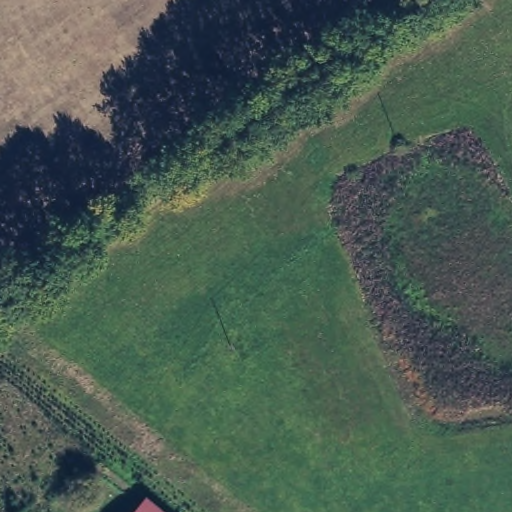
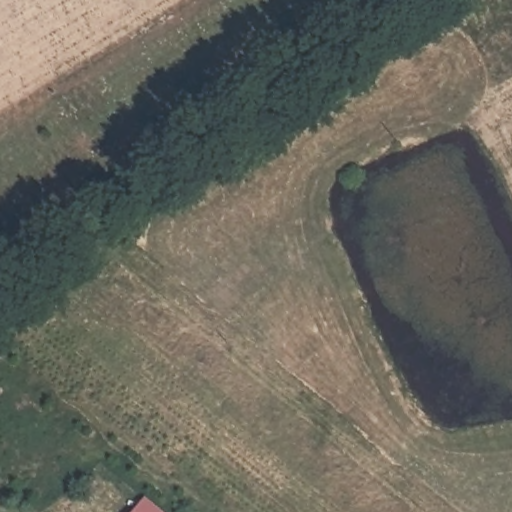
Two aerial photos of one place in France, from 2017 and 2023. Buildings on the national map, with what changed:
unchanged [(152,501),(162,509),(165,512),(143,512),(152,501)]

